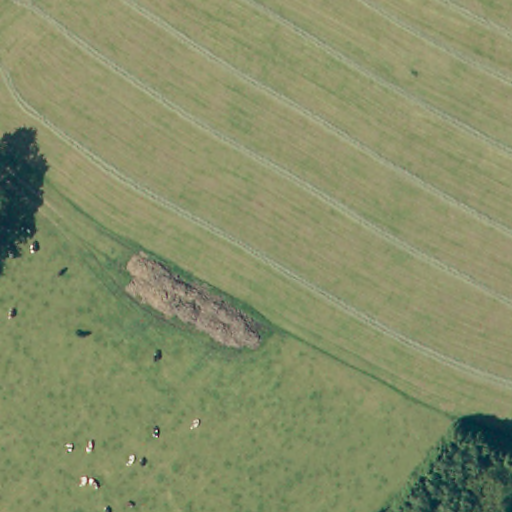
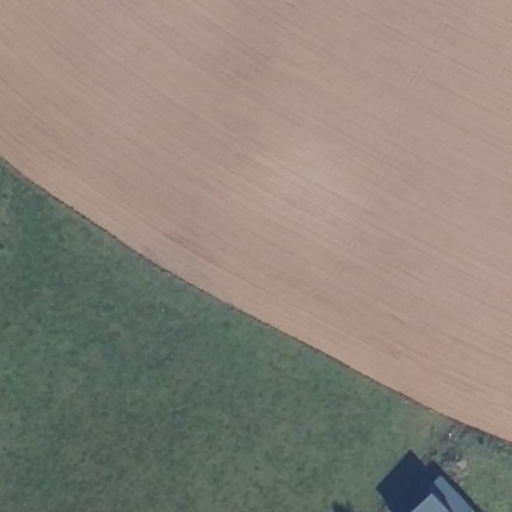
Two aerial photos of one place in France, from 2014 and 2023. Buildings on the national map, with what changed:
new [(434,495),(428,489),(441,477),(473,512),(415,512),(434,495)]

